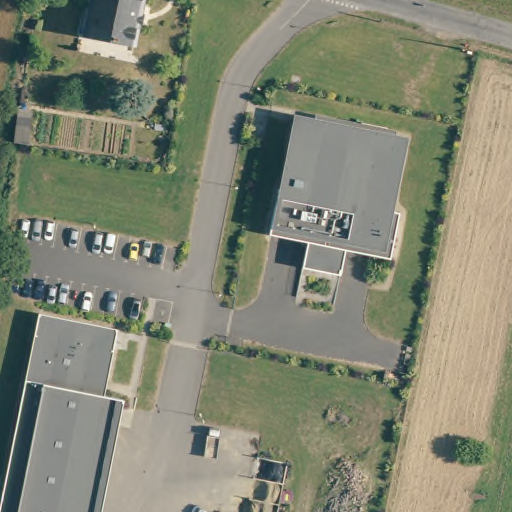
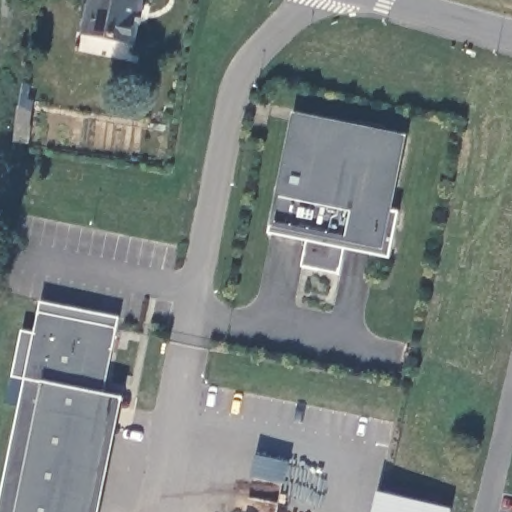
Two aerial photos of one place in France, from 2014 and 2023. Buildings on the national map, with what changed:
unchanged [(144,42),(88,31),(93,2),(99,4),(100,0),(153,0),(144,42)]
unchanged [(389,256),(369,252),(373,232),(348,227),(339,272),(301,264),(309,228),(292,224),(291,231),(269,227),(277,185),(281,186),(295,115),(403,136),(389,207),(398,209),(389,256)]
unchanged [(16,122),(30,125),(28,143),(13,141),(16,122)]
unchanged [(104,391),(123,395),(100,512),(0,512),(0,499),(38,309),(117,325),(104,391)]
new [(374,512),(378,493),(452,509),(451,512),(374,512)]

